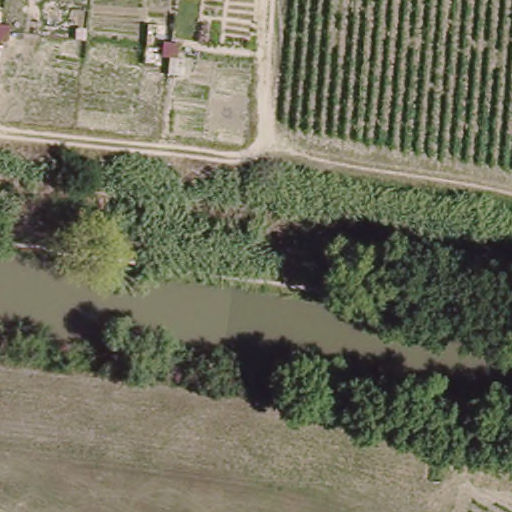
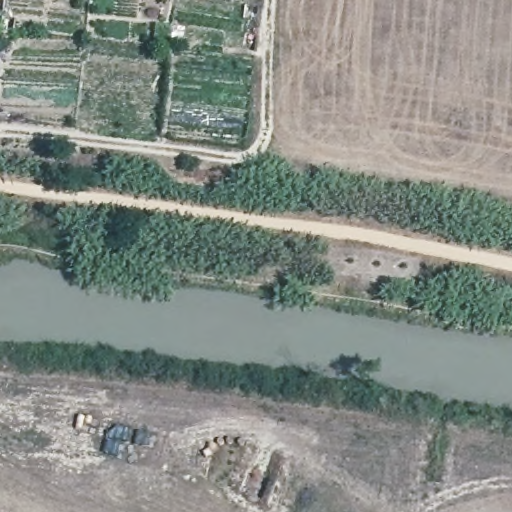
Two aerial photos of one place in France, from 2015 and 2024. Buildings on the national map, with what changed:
unchanged [(474,208),(471,219),(461,217),(463,206),(474,208)]

